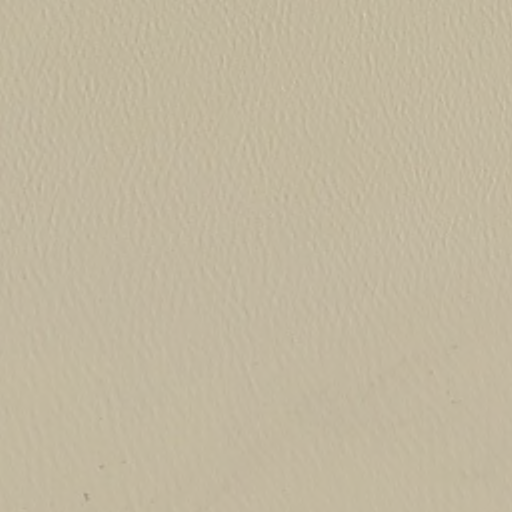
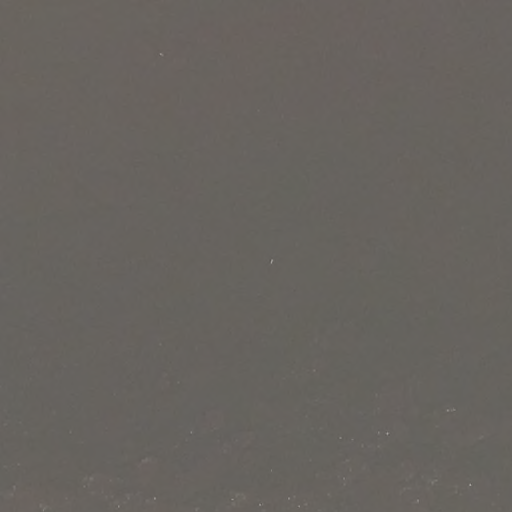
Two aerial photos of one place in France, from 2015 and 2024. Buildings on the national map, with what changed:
[]

